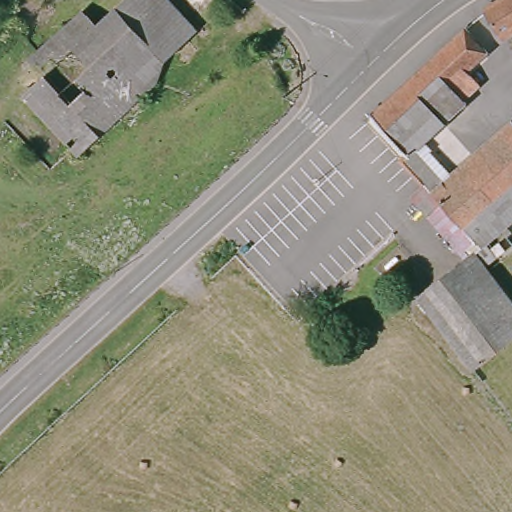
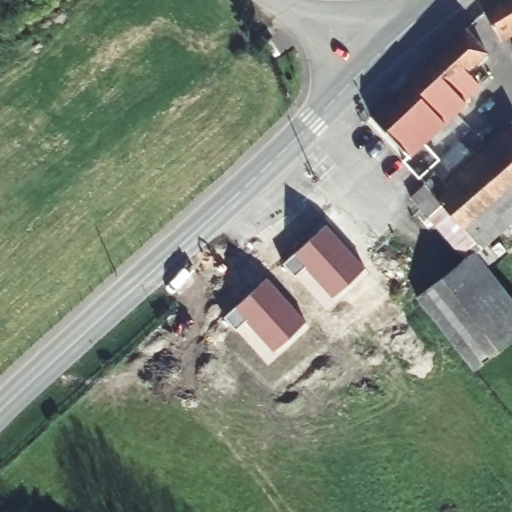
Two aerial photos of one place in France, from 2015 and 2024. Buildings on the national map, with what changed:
demolished [(56,145),(5,75),(109,0),(114,0),(118,5),(124,0),(214,0),(233,14),(154,72),(56,145)]
unchanged [(511,31),(512,33),(512,36),(500,37),(485,9),(501,0),(512,0),(512,30),(511,31)]
unchanged [(448,246),(429,221),(439,212),(408,167),(401,157),(391,145),(368,126),(449,44),(470,64),(443,91),(460,110),(412,163),(439,194),(509,128),(512,131),(512,211),(474,243),(471,246),(478,253),(501,280),(512,292),(512,343),(495,358),(432,291),(460,268),(442,252),(448,246)]
new [(283,263),(326,224),(365,267),(332,297),(305,266),(295,276),(283,263)]
new [(225,317),(267,277),(305,321),(273,351),(245,320),(236,329),(225,317)]

